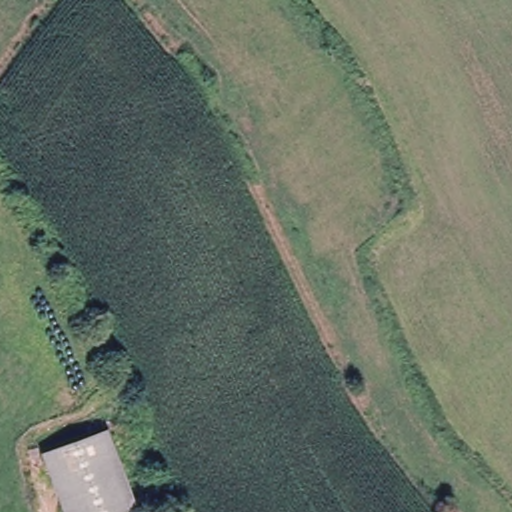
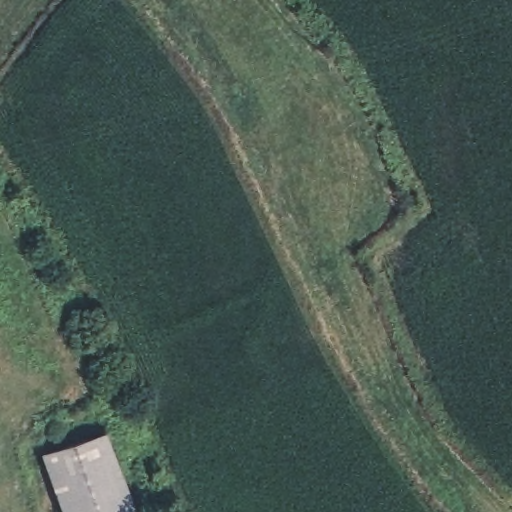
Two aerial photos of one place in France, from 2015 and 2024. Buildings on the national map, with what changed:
unchanged [(65,512),(44,459),(107,435),(137,512),(65,512)]

